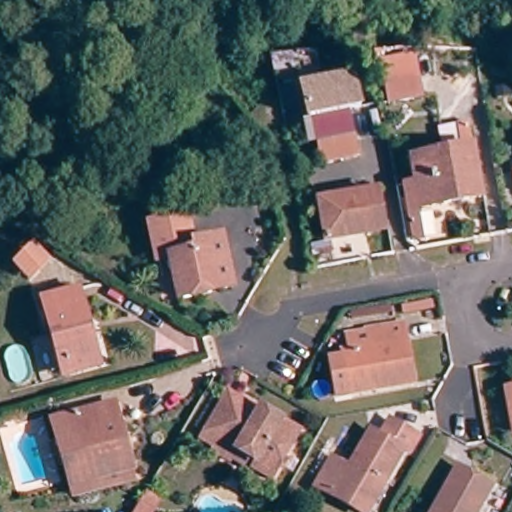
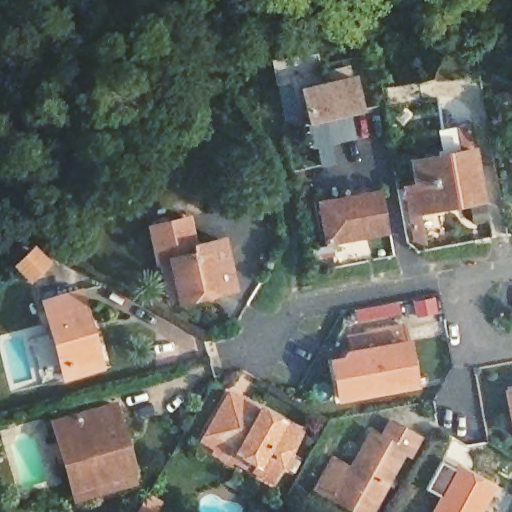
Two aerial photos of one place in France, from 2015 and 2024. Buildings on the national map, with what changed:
unchanged [(426,102),(389,108),(383,83),(395,82),(390,57),(416,54),(426,102)]
unchanged [(353,76),(361,109),(350,111),(360,155),(322,164),(317,144),(327,141),(322,118),(310,121),(301,88),(353,76)]
unchanged [(408,227),(405,212),(400,189),(413,186),(409,162),(470,150),(480,196),(460,201),(447,203),(419,209),(423,230),(408,227)]
unchanged [(323,241),(315,203),(376,191),(384,230),(323,241)]
unchanged [(190,292),(192,298),(176,303),(150,224),(192,210),(202,240),(215,235),(230,279),(190,292)]
unchanged [(41,297),(77,288),(97,355),(100,364),(62,375),(60,363),(41,297)]
unchanged [(331,368),(347,365),(346,359),(370,354),(367,339),(406,332),(419,390),(355,403),(350,384),(335,387),(331,368)]
unchanged [(226,467),(206,457),(215,441),(201,434),(219,401),(224,393),(275,421),(294,431),(266,482),(247,471),(229,461),(226,467)]
unchanged [(512,399),(512,445),(501,401),(512,399)]
unchanged [(89,481),(70,414),(111,403),(130,469),(89,481)]
unchanged [(54,419),(70,414),(89,481),(130,469),(134,480),(75,497),(54,419)]
unchanged [(327,459),(343,467),(366,426),(377,432),(385,419),(408,432),(412,435),(405,448),(400,445),(373,500),(366,512),(354,512),(328,498),(311,490),(327,459)]
unchanged [(445,463),(495,490),(484,512),(421,512),(430,494),(445,463)]

